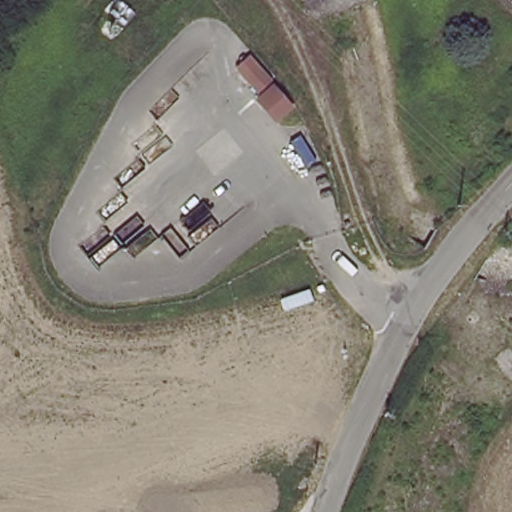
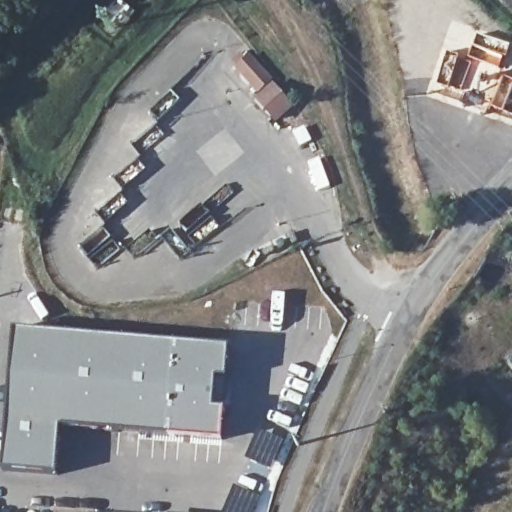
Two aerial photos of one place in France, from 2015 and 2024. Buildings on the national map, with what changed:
unchanged [(296,104),(275,124),(251,97),(258,92),(231,64),(249,50),(296,104)]
new [(9,325),(222,344),(220,372),(212,372),(210,405),(220,406),(217,437),(52,422),(49,470),(0,466),(0,446),(9,325)]

